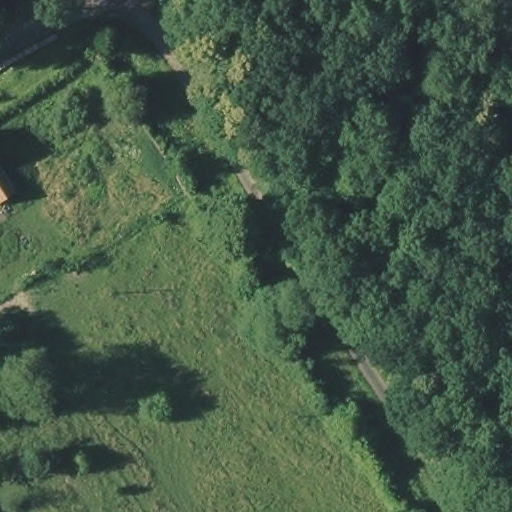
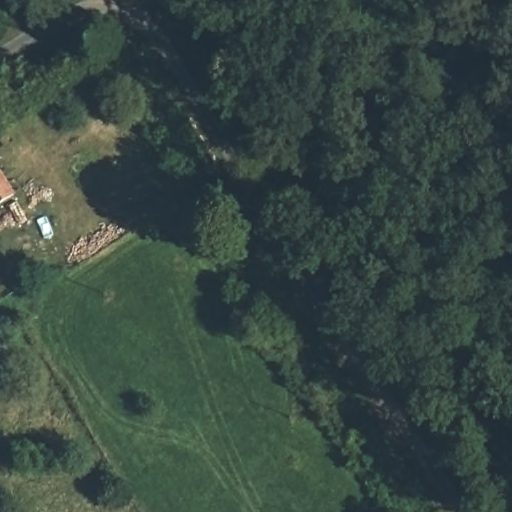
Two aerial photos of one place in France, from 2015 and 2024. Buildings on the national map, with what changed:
unchanged [(0,207),(0,170),(16,196),(0,207)]

